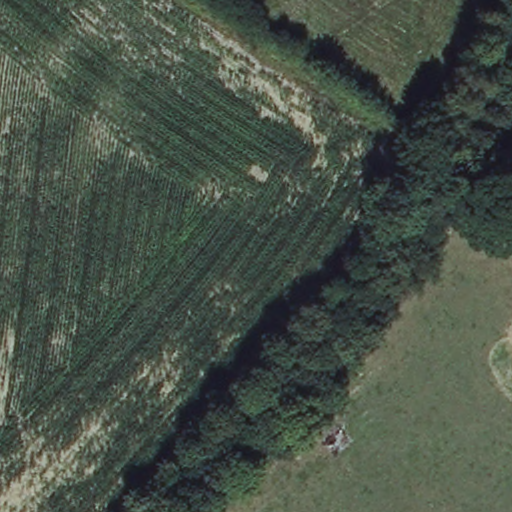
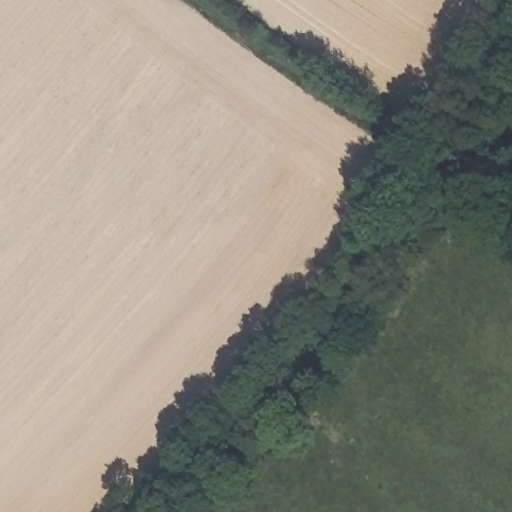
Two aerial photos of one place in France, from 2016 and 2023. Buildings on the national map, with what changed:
[]

